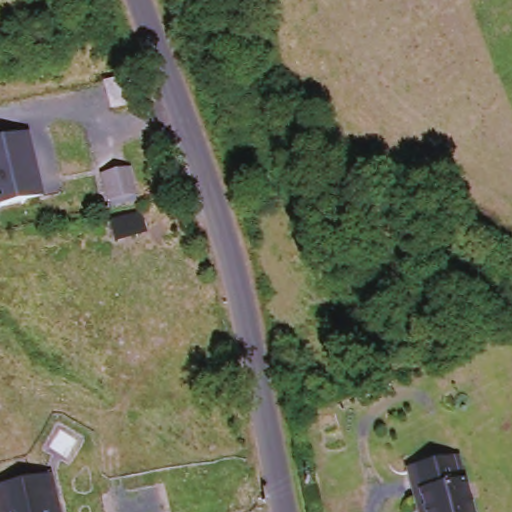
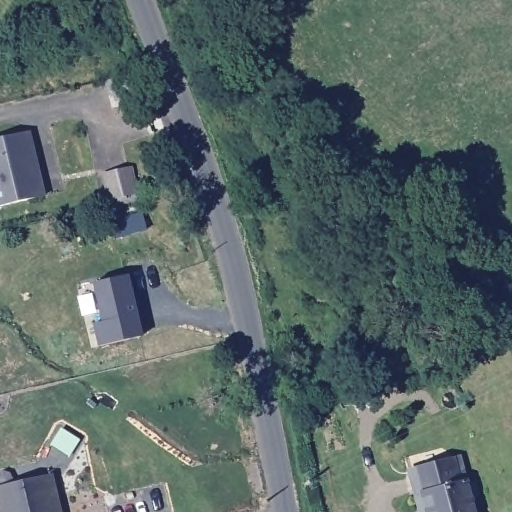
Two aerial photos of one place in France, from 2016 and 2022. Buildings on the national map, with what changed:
unchanged [(25,196),(0,202),(0,135),(27,129),(35,164),(42,192),(25,196)]
new [(102,323),(93,284),(127,276),(142,335),(97,345),(92,325),(102,323)]
unchanged [(457,461),(462,460),(467,485),(473,512),(426,512),(418,470),(457,461)]
unchanged [(6,512),(1,492),(52,480),(60,512),(6,512)]

